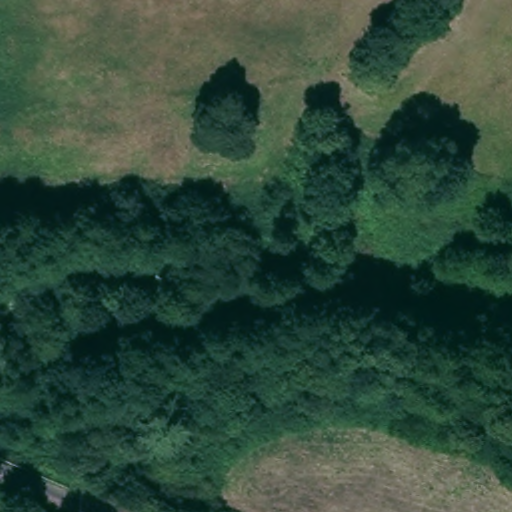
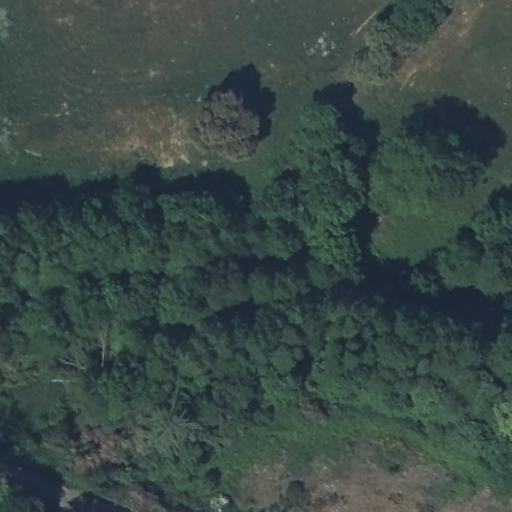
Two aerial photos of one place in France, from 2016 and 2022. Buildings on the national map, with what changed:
[]

